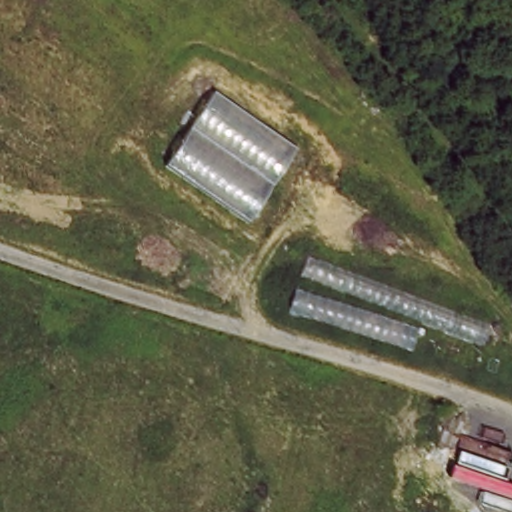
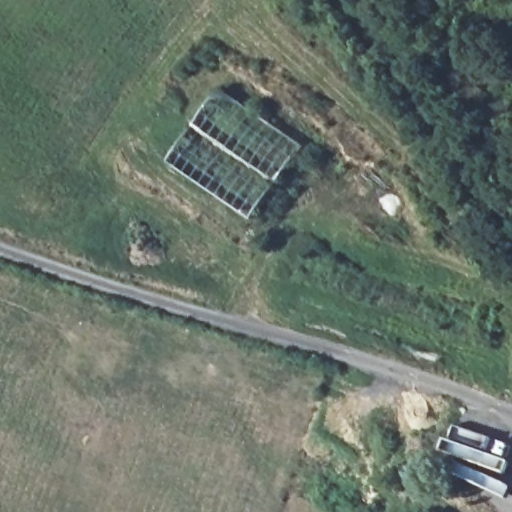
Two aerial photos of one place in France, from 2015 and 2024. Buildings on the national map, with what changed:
unchanged [(254,222),(170,164),(221,93),(301,148),(254,222)]
demolished [(498,323),(490,344),(427,325),(420,351),(290,310),(308,249),(498,323)]

